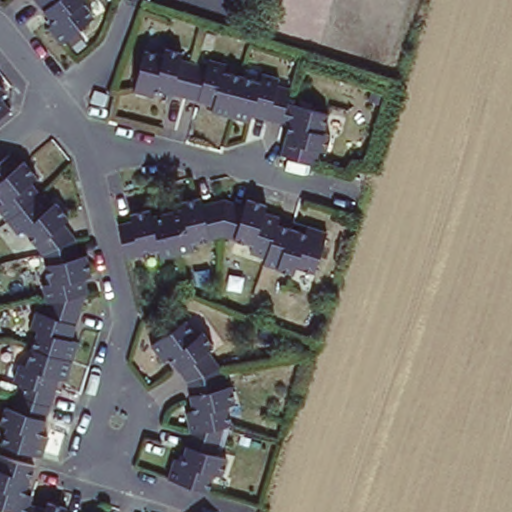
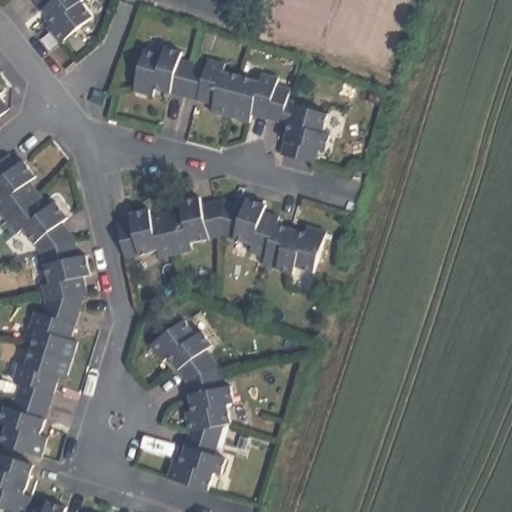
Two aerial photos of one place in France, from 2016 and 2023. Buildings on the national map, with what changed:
unchanged [(56,37),(45,22),(51,18),(36,0),(78,0),(89,12),(56,37)]
unchanged [(156,80),(154,87),(138,81),(150,42),(170,49),(172,41),(184,45),(181,52),(192,56),(181,88),(168,84),(156,80)]
unchanged [(249,111),(247,116),(211,105),(213,98),(181,88),(192,56),(210,62),(212,55),(228,60),(225,67),(259,79),(262,72),(276,77),(274,84),(289,89),(284,105),(279,121),(249,111)]
unchanged [(1,87),(9,97),(0,104),(0,74),(6,82),(1,87)]
unchanged [(96,94),(101,82),(113,87),(110,97),(96,94)]
unchanged [(321,117),(315,133),(324,137),(319,153),(310,150),(306,162),(278,152),(286,124),(279,121),(284,105),(321,117)]
unchanged [(6,425),(0,423),(0,415),(3,408),(11,411),(23,380),(14,377),(19,362),(26,364),(39,331),(31,328),(36,312),(44,314),(48,299),(45,286),(52,285),(46,252),(26,226),(19,230),(2,207),(9,201),(0,190),(0,155),(9,147),(22,165),(29,161),(40,175),(34,180),(52,206),(60,201),(68,214),(61,220),(75,237),(79,256),(86,255),(90,272),(82,273),(85,290),(67,342),(74,345),(64,375),(58,373),(36,437),(44,440),(38,455),(1,442),(6,425)]
unchanged [(244,245),(247,237),(221,230),(188,236),(189,242),(161,247),(160,242),(127,248),(120,216),(134,214),(132,206),(151,202),(153,209),(183,202),(182,195),(200,192),(201,199),(222,194),(240,199),(242,191),(260,197),(256,205),(272,210),(269,219),(259,242),(258,249),(244,245)]
unchanged [(300,229),(303,222),(321,228),(307,267),(287,260),(285,267),(255,257),(258,249),(259,242),(269,219),(300,229)]
unchanged [(175,478),(180,462),(188,465),(199,434),(196,416),(203,414),(196,385),(180,359),(174,363),(164,350),(196,326),(206,339),(214,335),(222,346),(214,351),(225,367),(230,391),(238,388),(241,405),(234,406),(238,423),(227,426),(216,457),(231,462),(226,477),(217,474),(212,492),(175,478)]
unchanged [(0,451),(45,465),(31,504),(28,512),(25,512),(0,503),(0,451)]
unchanged [(46,508),(48,501),(64,507),(62,512),(28,512),(31,504),(46,508)]

